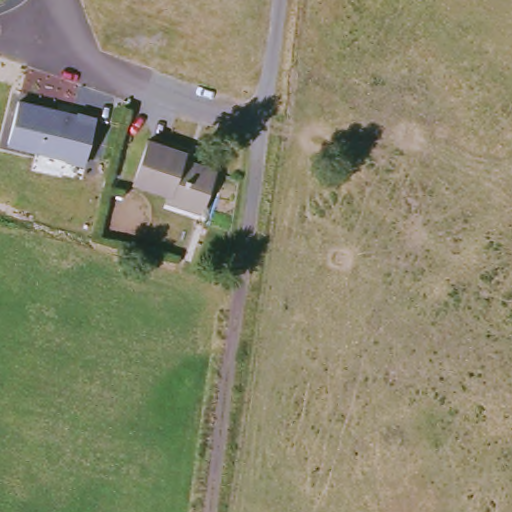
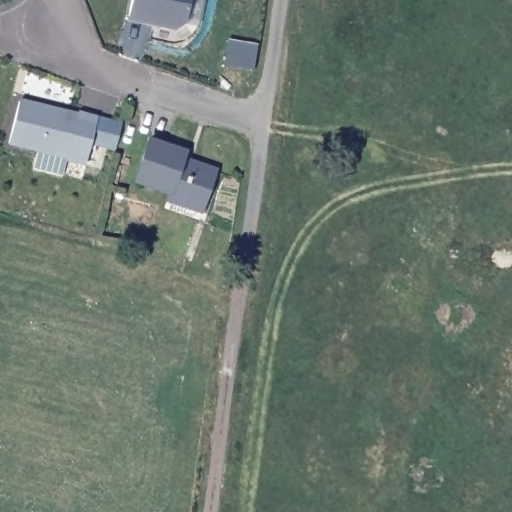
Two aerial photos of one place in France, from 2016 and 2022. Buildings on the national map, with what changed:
new [(175,28),(128,19),(132,0),(190,0),(186,23),(175,28)]
unchanged [(69,160),(69,158),(12,144),(22,102),(61,112),(70,114),(80,116),(81,114),(100,119),(88,165),(69,160)]
unchanged [(175,192),(140,181),(153,139),(188,150),(185,157),(221,168),(210,202),(208,210),(172,199),(175,192)]

